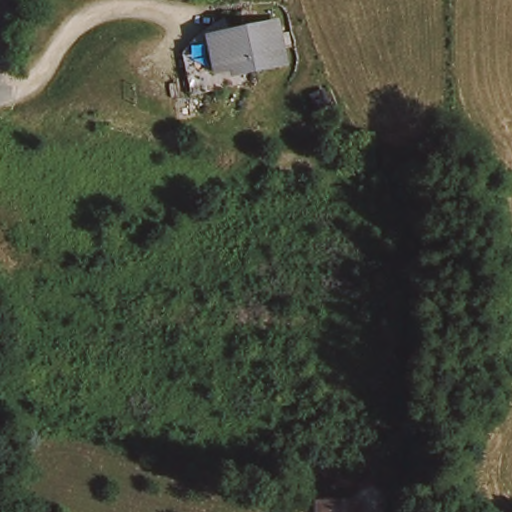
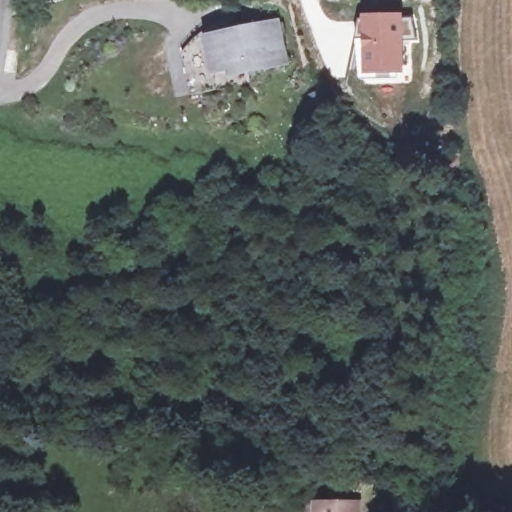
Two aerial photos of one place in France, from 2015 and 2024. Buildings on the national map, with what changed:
new [(404,11),(405,17),(412,16),(415,41),(407,42),(407,77),(362,78),(360,13),(404,11)]
unchanged [(284,22),(294,65),(259,74),(255,66),(220,74),(212,38),(284,22)]
unchanged [(355,512),(315,512),(315,510),(355,510),(355,512)]

